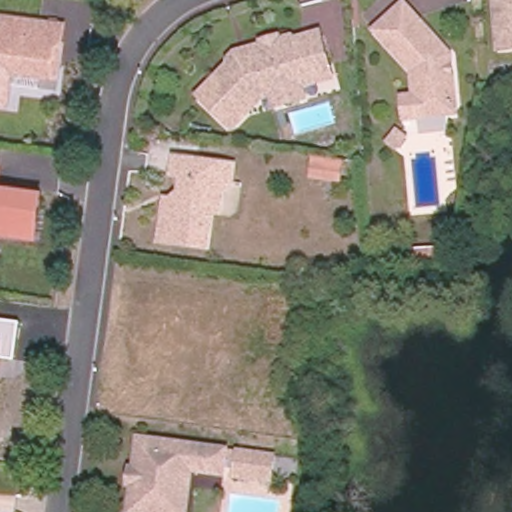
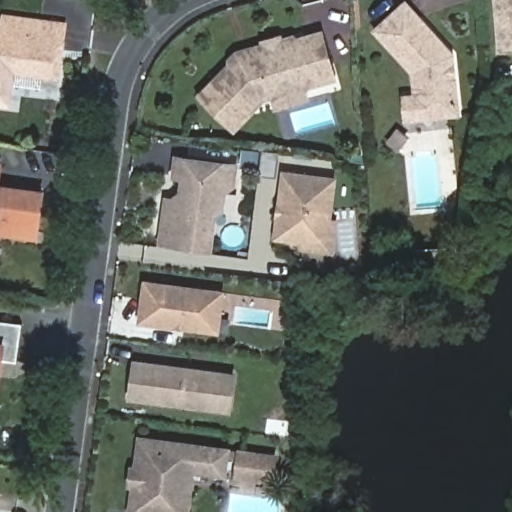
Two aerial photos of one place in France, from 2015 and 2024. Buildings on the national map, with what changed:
unchanged [(496,4),(496,0),(512,0),(512,44),(500,44),(496,4)]
unchanged [(409,97),(421,96),(418,72),(381,30),(410,4),(457,55),(462,114),(423,118),(411,119),(409,97)]
unchanged [(70,22),(62,79),(14,74),(10,105),(0,104),(0,22),(2,12),(70,22)]
unchanged [(267,84),(258,86),(227,118),(196,88),(238,44),(256,38),(259,31),(273,27),(282,34),(316,25),(329,66),(298,75),(302,88),(271,98),(267,84)]
unchanged [(222,210),(214,217),(210,249),(160,242),(165,198),(171,199),(180,193),(183,178),(173,176),(176,158),(236,165),(234,185),(225,192),(222,210)]
unchanged [(2,161),(0,181),(0,161),(2,161)]
new [(333,216),(339,217),(335,253),(300,248),(301,241),(274,238),(284,168),(337,174),(333,216)]
unchanged [(45,192),(36,239),(0,233),(0,186),(45,192)]
unchanged [(447,260),(431,261),(430,249),(446,249),(447,260)]
new [(219,329),(141,319),(146,280),(224,290),(219,329)]
unchanged [(3,359),(0,381),(0,320),(21,323),(16,360),(3,359)]
new [(214,407),(131,395),(136,359),(220,371),(214,407)]
unchanged [(134,484),(130,484),(132,467),(136,468),(140,437),(227,449),(225,474),(193,470),(187,512),(130,512),(134,484)]
unchanged [(276,452),(268,482),(232,476),(239,446),(276,452)]

